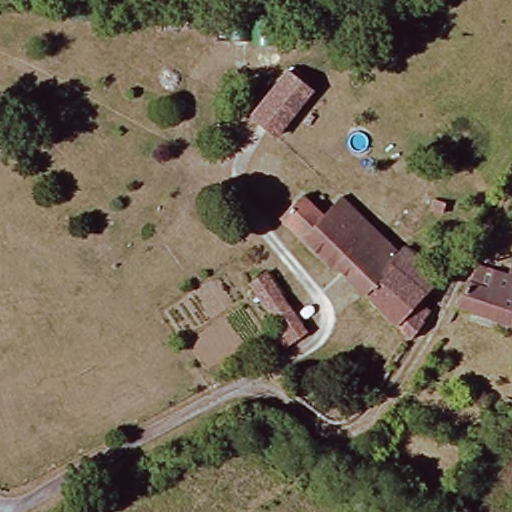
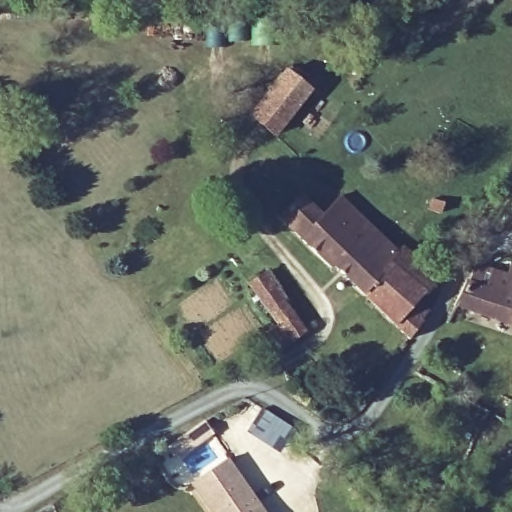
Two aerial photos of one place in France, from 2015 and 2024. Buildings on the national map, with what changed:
unchanged [(291,70),(315,90),(279,134),(256,116),(291,70)]
unchanged [(279,219),(305,192),(326,211),(346,189),(373,213),(332,262),(279,219)]
unchanged [(430,290),(428,296),(436,301),(415,334),(335,265),(332,262),(373,213),(406,240),(392,256),(426,285),(430,290)]
unchanged [(410,236),(425,249),(443,263),(426,285),(392,256),(406,240),(410,236)]
unchanged [(471,312),(476,300),(464,296),(478,265),(481,258),(499,264),(512,269),(512,331),(471,312)]
unchanged [(277,349),(265,326),(276,318),(270,305),(252,276),(273,265),(288,292),(310,331),(277,349)]
new [(263,512),(209,512),(191,484),(228,458),(263,512)]

